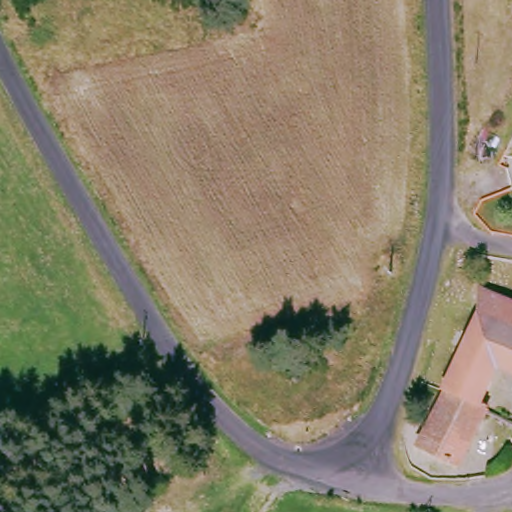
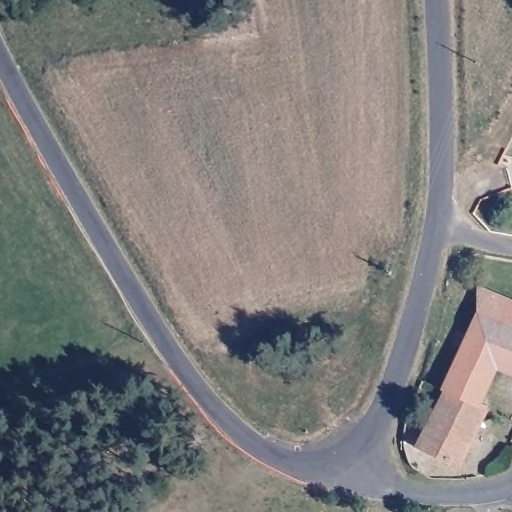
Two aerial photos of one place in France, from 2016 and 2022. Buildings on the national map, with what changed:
unchanged [(494,365),(483,389),(495,396),(487,413),(442,393),(437,390),(473,319),(476,313),(475,289),(512,305),(512,374),(494,365)]
unchanged [(487,413),(465,443),(452,466),(413,449),(442,393),(487,413)]

